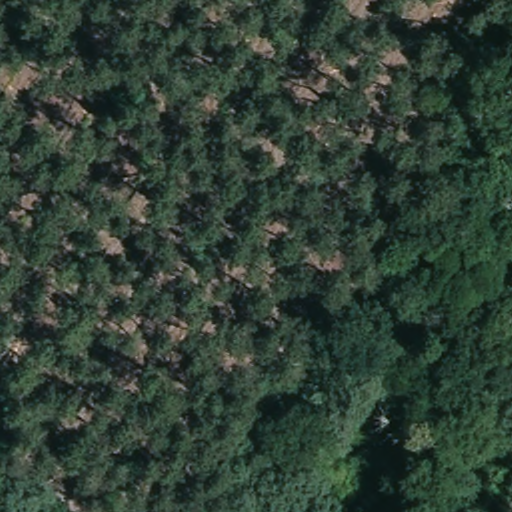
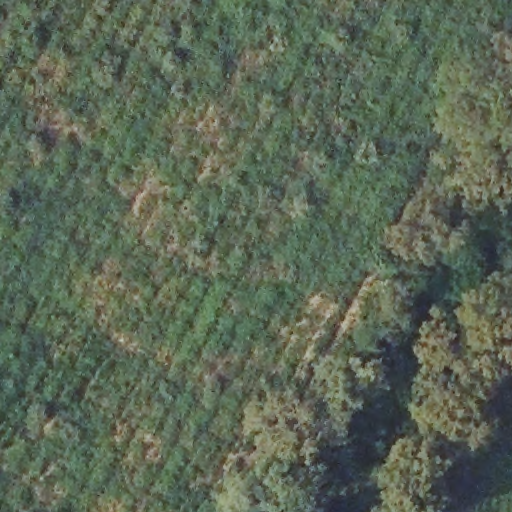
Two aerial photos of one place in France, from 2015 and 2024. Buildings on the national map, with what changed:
[]

